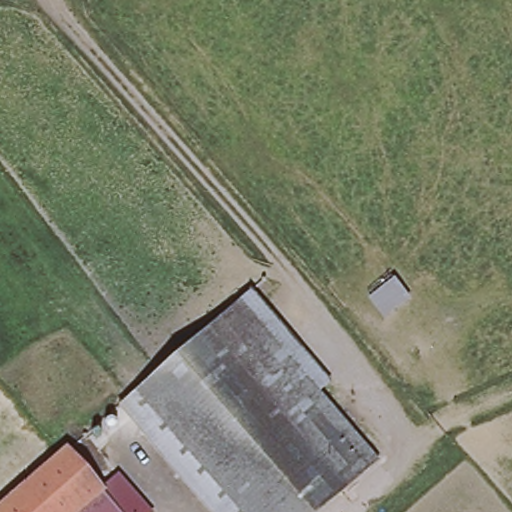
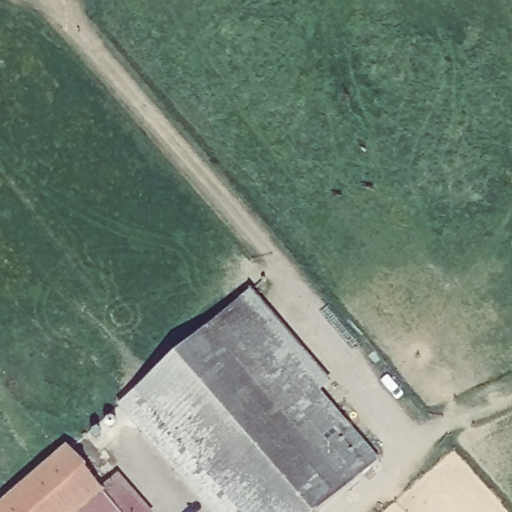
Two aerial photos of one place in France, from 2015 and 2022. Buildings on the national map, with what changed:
unchanged [(340,493),(319,512),(243,512),(136,388),(232,305),(315,397),(358,447),(373,464),(340,493)]
unchanged [(0,511),(67,454),(102,495),(103,494),(122,477),(151,512),(0,512),(0,511)]

